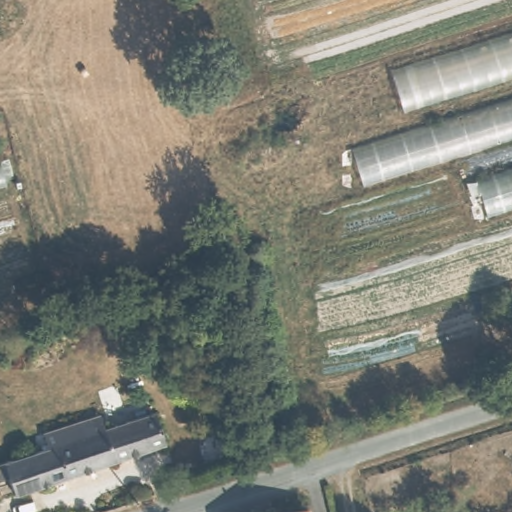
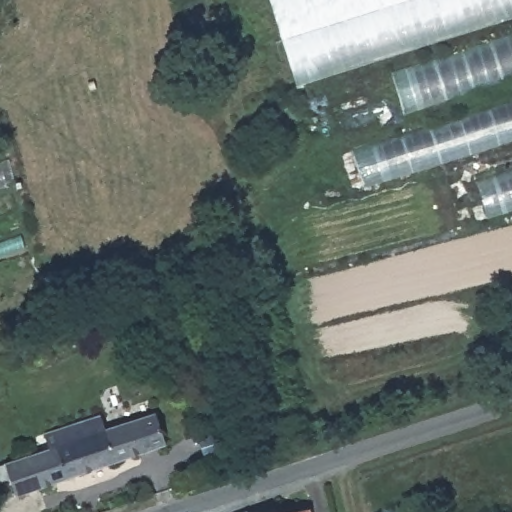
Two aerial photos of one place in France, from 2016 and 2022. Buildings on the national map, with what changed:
new [(294,84),(268,0),(512,0),(512,17),(294,84)]
unchanged [(512,30),(512,78),(403,111),(391,67),(512,30)]
unchanged [(512,99),(512,139),(354,189),(343,150),(512,99)]
unchanged [(512,167),(512,207),(487,214),(476,177),(512,167)]
unchanged [(14,475),(3,480),(0,472),(0,465),(51,445),(42,424),(95,406),(105,432),(158,413),(169,446),(21,496),(14,475)]
unchanged [(287,512),(304,508),(304,512),(287,512)]

